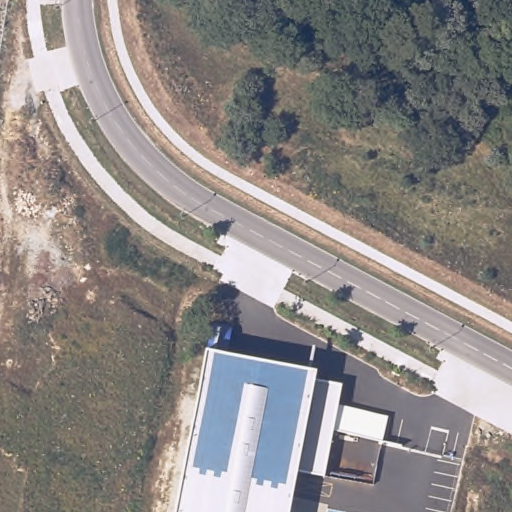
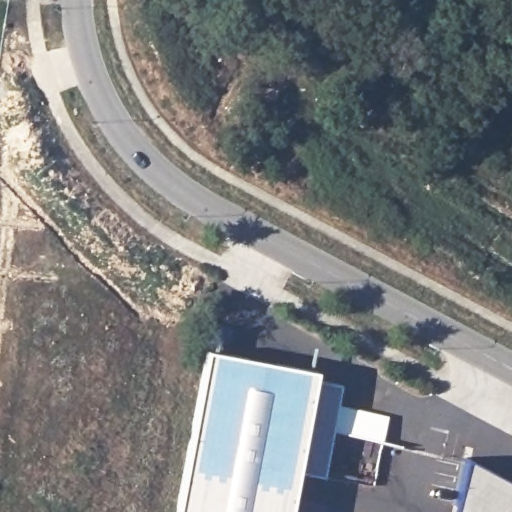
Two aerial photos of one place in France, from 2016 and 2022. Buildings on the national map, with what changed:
unchanged [(387,415),(382,440),(332,428),(323,475),(297,469),(290,512),(176,512),(207,350),(317,371),(315,380),(342,385),(339,405),(387,415)]
new [(512,482),(512,512),(455,512),(468,458),(512,482)]

